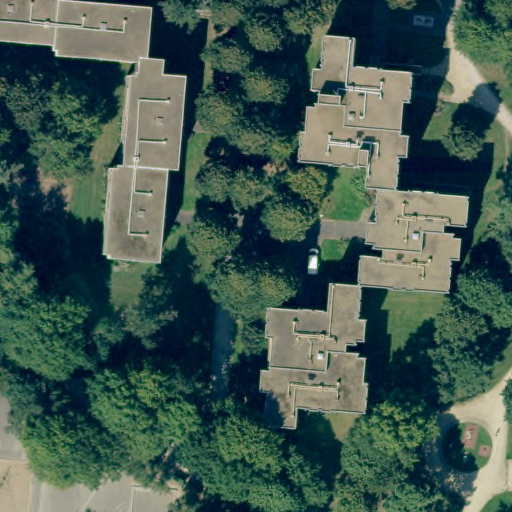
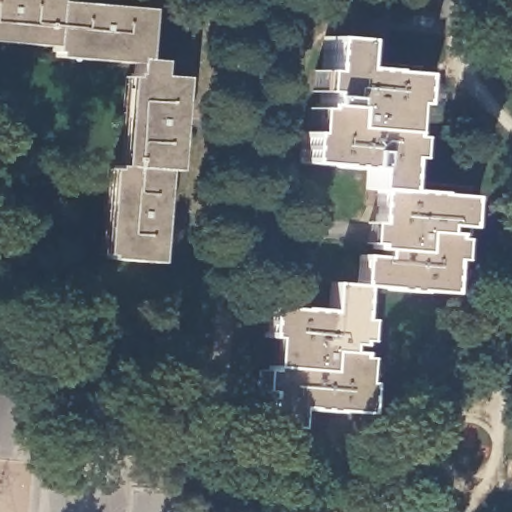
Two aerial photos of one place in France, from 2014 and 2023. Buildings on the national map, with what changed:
unchanged [(146,3),(142,54),(133,53),(52,45),(48,45),(49,42),(49,37),(0,33),(0,0),(111,0),(146,3)]
unchanged [(375,185),(364,184),(366,165),(297,159),(301,129),(304,130),(312,130),(315,100),(317,100),(318,88),(321,67),(323,34),(354,36),(352,64),(380,67),(411,70),(407,100),(395,99),(392,127),(401,129),(398,153),(395,186),(412,187),(447,190),(467,192),(464,222),(442,220),(442,229),(452,230),(450,255),(447,288),(361,280),(358,313),(355,338),(346,337),(345,347),(357,347),(354,378),(362,379),(367,379),(365,409),(297,404),(295,422),(263,420),(267,385),(268,361),(276,362),(279,332),(265,331),(267,301),(297,302),(326,305),(328,277),(356,280),(358,251),(382,254),(382,246),(371,245),(372,219),(375,185)]
unchanged [(133,53),(142,54),(159,55),(158,70),(181,72),(173,165),(170,165),(162,164),(161,180),(155,255),(105,250),(105,247),(112,165),(112,160),(117,160),(121,160),(128,74),(128,67),(132,68),(132,59),(133,53)]

